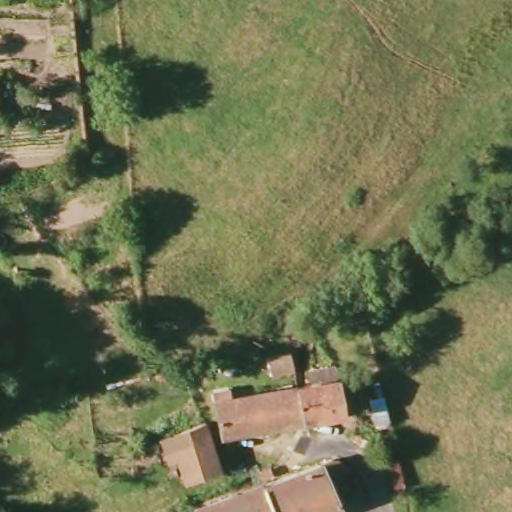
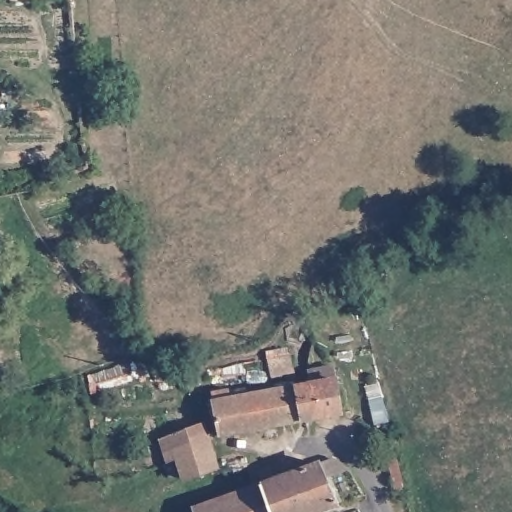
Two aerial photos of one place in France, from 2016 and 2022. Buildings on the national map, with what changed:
unchanged [(288,373),(266,377),(264,360),(285,355),(288,373)]
unchanged [(331,377),(338,413),(306,420),(300,383),(331,377)]
unchanged [(298,422),(215,438),(207,401),(290,385),(298,422)]
unchanged [(213,466),(178,479),(170,459),(161,462),(156,441),(164,437),(201,422),(213,466)]
unchanged [(154,443),(156,450),(146,454),(143,447),(154,443)]
unchanged [(347,468),(327,478),(323,464),(334,458),(347,468)]
unchanged [(263,483),(319,462),(326,479),(337,505),(318,512),(195,512),(193,507),(263,483)]
unchanged [(395,490),(389,463),(396,462),(403,488),(395,490)]
unchanged [(171,469),(173,473),(167,476),(165,472),(171,469)]

